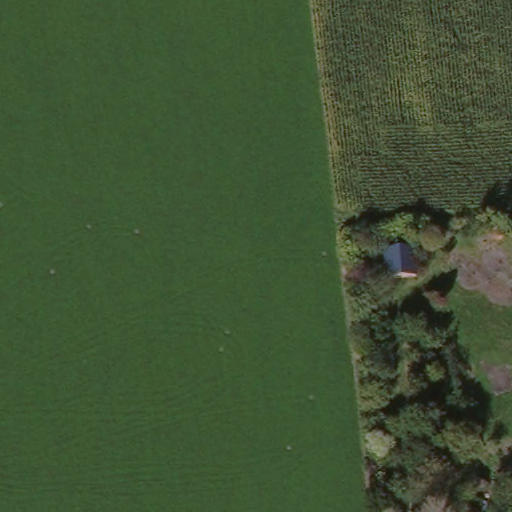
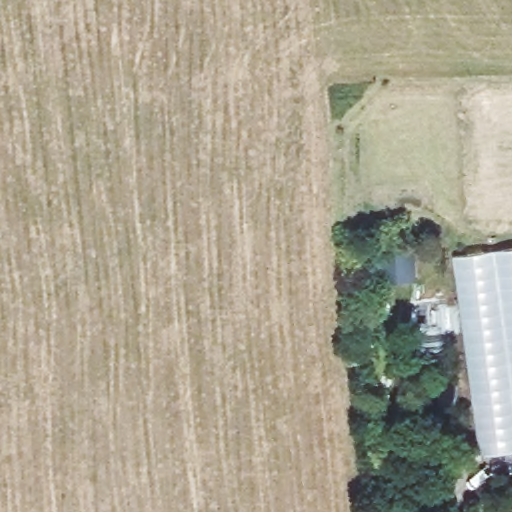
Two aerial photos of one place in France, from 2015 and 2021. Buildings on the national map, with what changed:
new [(454,256),(512,248),(512,448),(480,453),(454,256)]
unchanged [(385,286),(383,251),(417,249),(421,281),(385,286)]

